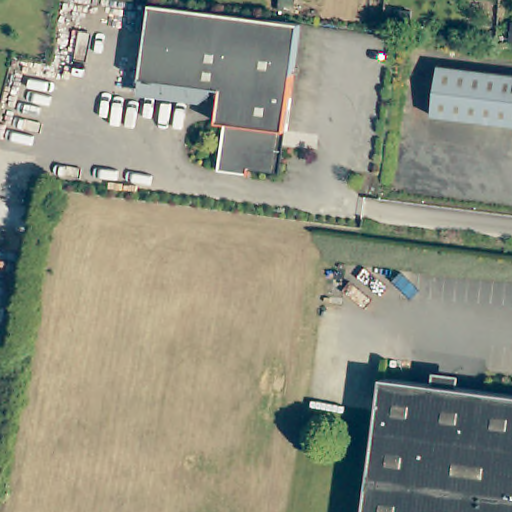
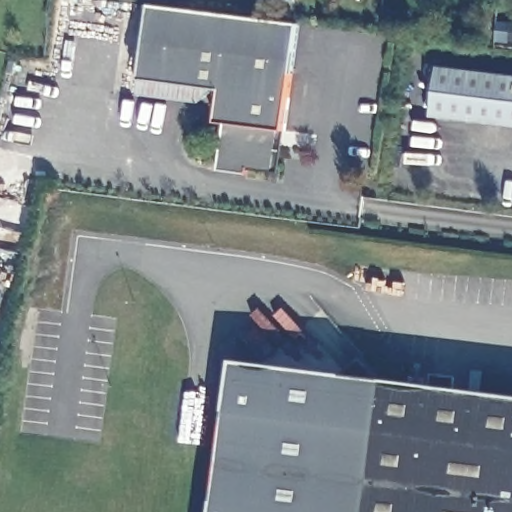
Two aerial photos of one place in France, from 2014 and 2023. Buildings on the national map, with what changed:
unchanged [(290,125),(283,124),(278,165),(254,162),(254,167),(225,164),(230,117),(224,116),(227,84),(146,74),(155,0),(167,0),(270,13),(304,17),(290,125)]
unchanged [(442,61),(512,69),(512,121),(435,111),(442,61)]
new [(212,512),(230,360),(343,373),(360,357),(377,377),(381,378),(364,512),(212,512)]
unchanged [(512,395),(512,512),(364,512),(381,378),(512,395)]

